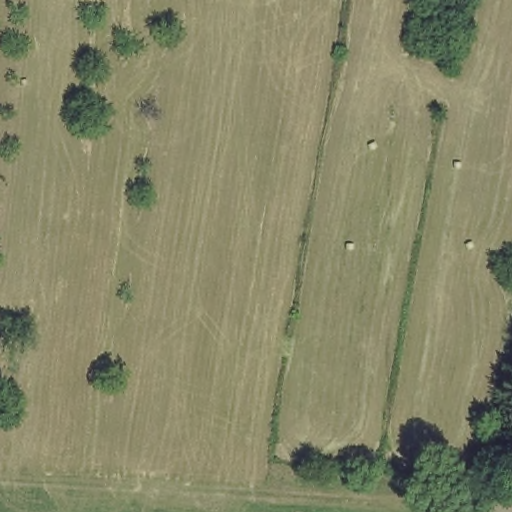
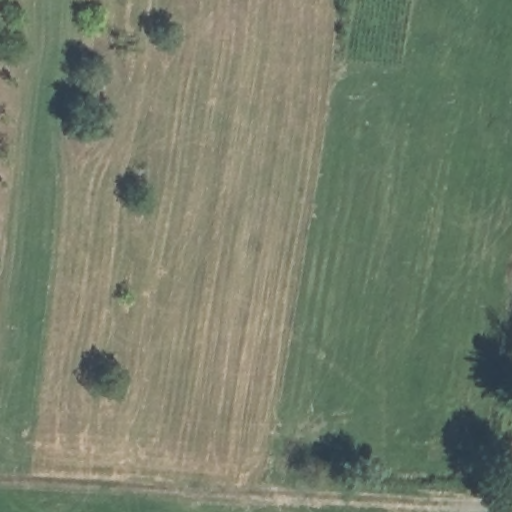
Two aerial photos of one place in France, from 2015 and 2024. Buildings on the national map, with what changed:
[]

